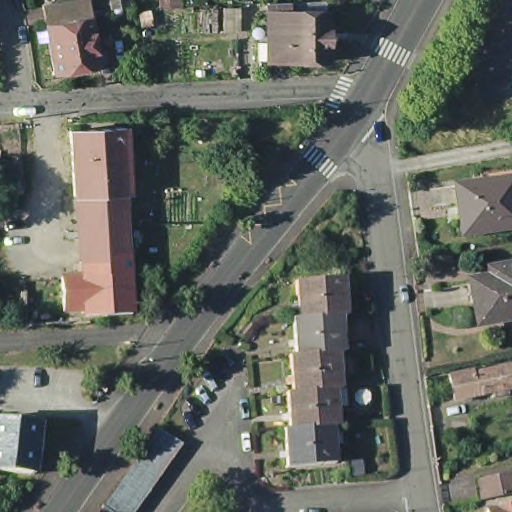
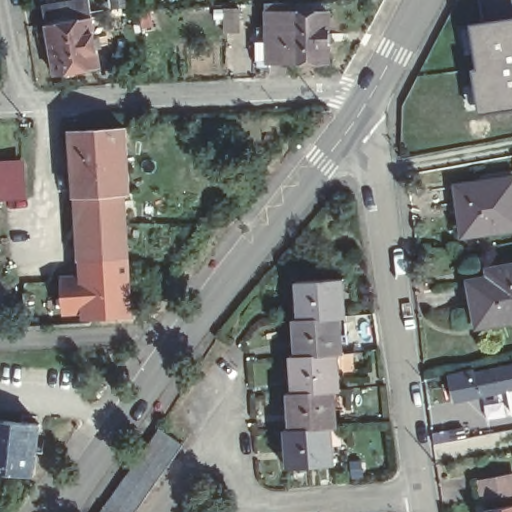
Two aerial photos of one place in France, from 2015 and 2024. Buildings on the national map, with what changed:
unchanged [(58,79),(53,45),(43,46),(42,37),(52,36),(50,28),(47,7),(92,2),(95,22),(105,72),(58,79)]
unchanged [(295,8),(295,15),(333,15),(333,66),(272,67),(270,7),(295,8)]
new [(512,100),(482,105),(477,66),(482,65),(475,26),(512,21),(512,100)]
unchanged [(82,226),(80,196),(75,196),(70,130),(123,127),(128,193),(123,193),(125,223),(82,226)]
unchanged [(0,202),(0,168),(19,166),(22,199),(0,202)]
unchanged [(455,185),(512,176),(512,227),(460,233),(455,185)]
unchanged [(132,314),(90,316),(88,316),(86,284),(82,226),(125,223),(132,314)]
unchanged [(512,323),(478,330),(470,286),(487,283),(485,274),(512,269),(512,323)]
unchanged [(338,314),(297,318),(293,282),(341,277),(345,313),(338,314)]
unchanged [(90,323),(27,326),(27,293),(86,284),(88,316),(90,316),(90,323)]
unchanged [(342,351),(336,351),(295,354),(292,319),(297,318),(338,314),(342,351)]
unchanged [(340,388),(335,389),(292,391),(288,355),(295,354),(336,351),(340,388)]
unchanged [(490,395),(475,398),(452,403),(447,376),(470,371),(471,376),(512,367),(512,391),(505,392),(507,396),(490,399),(490,395)]
unchanged [(332,425),(290,429),(287,392),(292,391),(335,389),(338,425),(332,425)]
unchanged [(41,424),(36,474),(0,471),(0,421),(41,424)]
unchanged [(290,429),(332,425),(336,465),(290,468),(285,429),(290,429)]
unchanged [(118,492),(127,480),(135,469),(143,458),(150,447),(160,434),(183,451),(174,464),(167,475),(158,486),(150,497),(142,509),(140,512),(104,512),(111,502),(118,492)]
unchanged [(512,474),(512,494),(480,499),(476,481),(512,474)]
unchanged [(512,505),(512,512),(483,512),(483,509),(512,505)]

